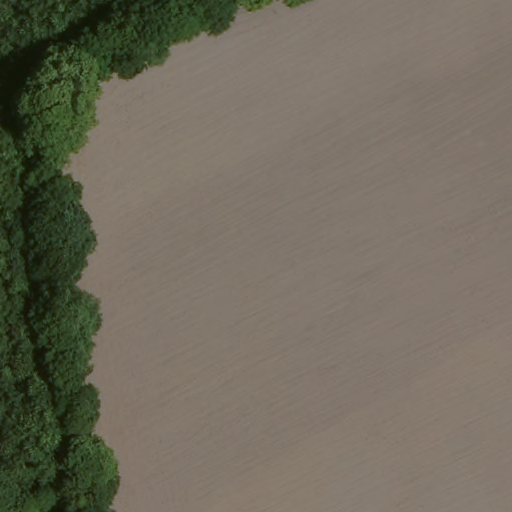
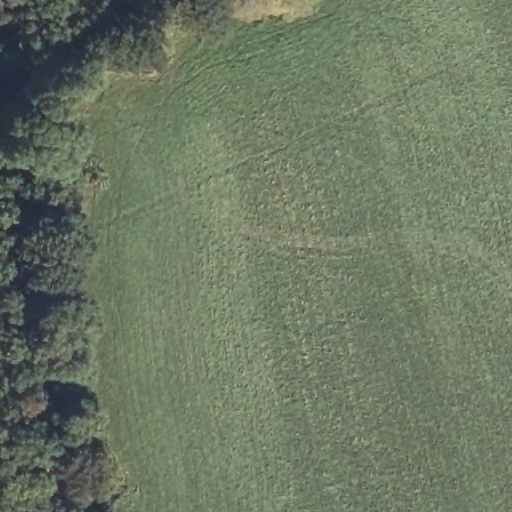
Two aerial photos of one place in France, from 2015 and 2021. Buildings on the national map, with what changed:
[]

